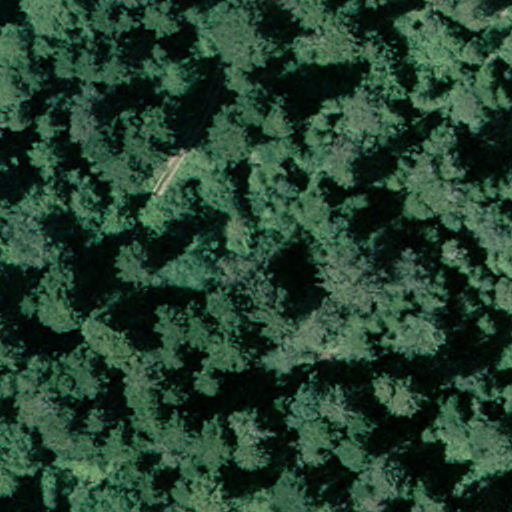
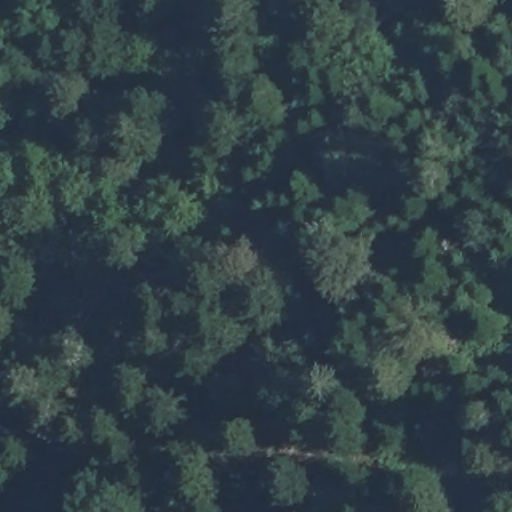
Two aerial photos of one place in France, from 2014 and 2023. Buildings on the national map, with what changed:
[]

